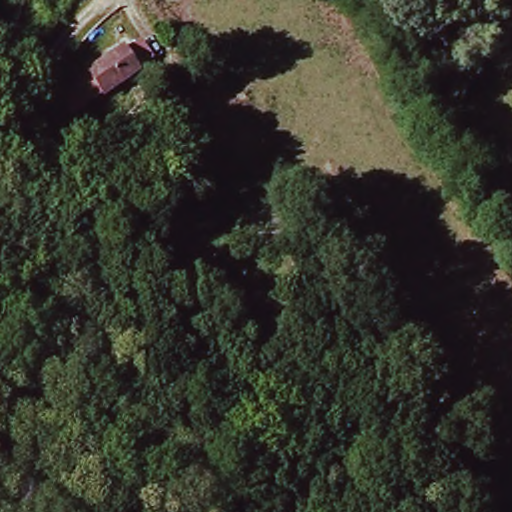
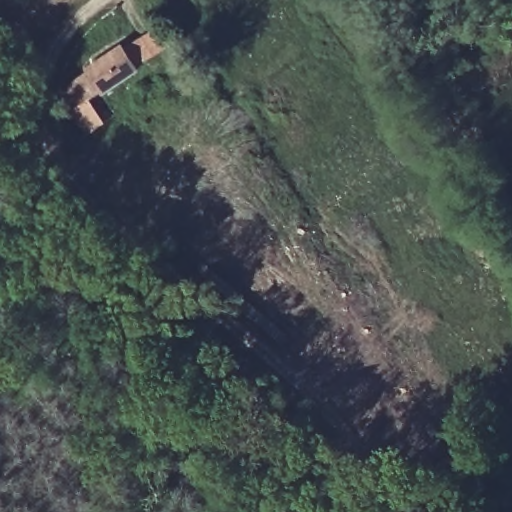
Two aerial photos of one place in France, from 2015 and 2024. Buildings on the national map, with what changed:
unchanged [(64,88),(126,45),(144,31),(147,39),(156,51),(137,66),(77,106),(64,88)]

